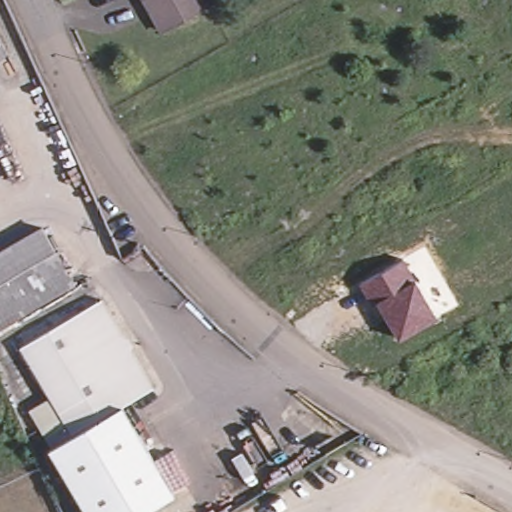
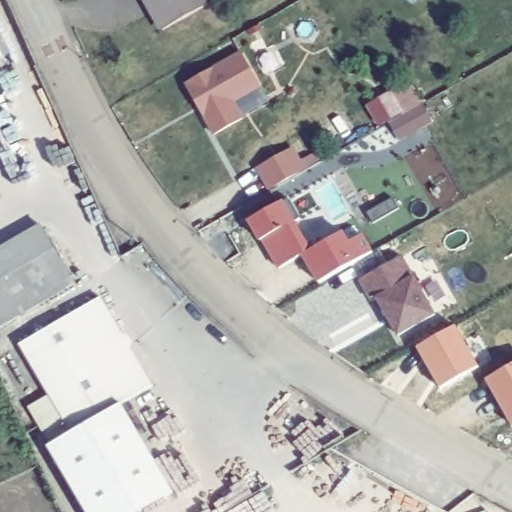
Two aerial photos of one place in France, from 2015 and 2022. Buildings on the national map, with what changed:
unchanged [(204,4),(157,29),(148,12),(142,0),(211,0),(204,4)]
unchanged [(0,55),(0,52),(1,54),(0,55)]
new [(185,93),(240,62),(259,95),(232,110),(242,127),(213,144),(200,121),(197,115),(185,93)]
new [(367,104),(394,90),(399,100),(418,90),(435,122),(400,141),(390,122),(380,127),(367,104)]
new [(257,168),(295,147),(306,170),(269,191),(257,168)]
new [(262,240),(260,241),(249,219),(285,200),(312,248),(345,230),(352,241),(365,235),(374,253),(318,283),(303,256),(278,270),(262,240)]
unchanged [(95,267),(0,324),(0,236),(56,205),(95,267)]
unchanged [(377,300),(372,304),(360,281),(404,256),(416,276),(438,316),(398,338),(377,300)]
unchanged [(45,392),(22,348),(17,340),(100,295),(150,384),(118,402),(67,430),(45,392)]
new [(455,325),(477,366),(439,387),(417,347),(455,325)]
unchanged [(45,392),(27,401),(3,358),(22,348),(45,392)]
new [(512,365),(512,423),(510,424),(486,378),(512,365)]
unchanged [(130,512),(81,512),(44,443),(67,430),(118,402),(167,491),(130,512)]

